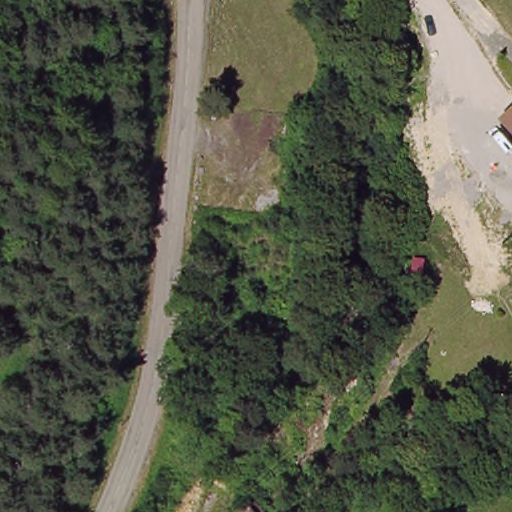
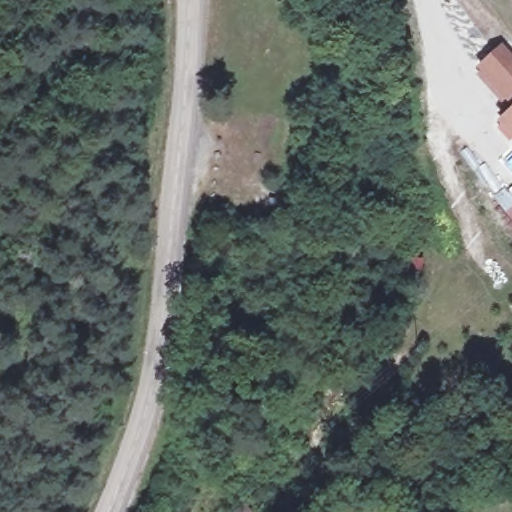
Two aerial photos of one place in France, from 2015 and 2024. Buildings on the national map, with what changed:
new [(509,112),(478,76),(481,73),(478,69),(503,44),(512,54),(512,136),(499,122),(509,112)]
demolished [(502,120),(512,111),(512,132),(502,120)]

